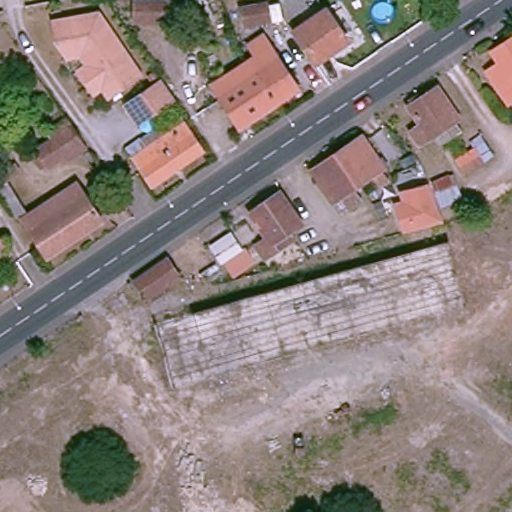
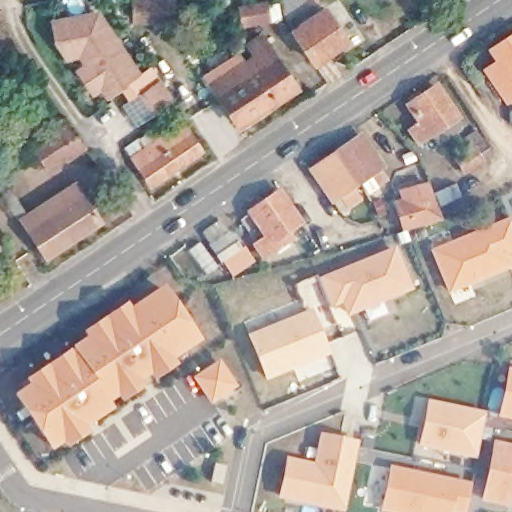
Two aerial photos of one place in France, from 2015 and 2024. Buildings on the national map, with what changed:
unchanged [(289,21),(286,0),(305,0),(310,7),(289,21)]
unchanged [(246,27),(244,9),(267,6),(270,24),(246,27)]
unchanged [(327,10),(350,43),(318,64),(296,31),(327,10)]
unchanged [(101,97),(73,56),(60,57),(47,39),(45,20),(90,15),(132,76),(101,97)]
unchanged [(489,56),(502,48),(495,38),(512,27),(512,87),(510,88),(489,56)]
unchanged [(259,53),(256,55),(251,46),(264,38),(298,90),(279,102),(242,126),(221,95),(215,86),(248,66),(260,56),(259,53)]
unchanged [(430,115),(419,96),(446,79),(464,108),(427,133),(419,121),(430,115)]
unchanged [(128,105),(164,80),(175,97),(140,121),(128,105)]
unchanged [(186,120),(204,146),(154,179),(136,152),(186,120)]
unchanged [(55,136),(52,133),(67,122),(85,148),(69,159),(65,153),(50,163),(40,146),(55,136)]
unchanged [(379,164),(377,166),(386,176),(376,183),(368,172),(349,185),(356,197),(345,204),(338,193),(329,199),(312,172),(309,167),(324,158),(359,135),(379,164)]
unchanged [(472,164),(465,152),(483,141),(490,153),(472,164)]
unchanged [(49,255),(26,218),(50,201),(78,183),(85,192),(103,219),(49,255)]
unchanged [(435,222),(398,232),(390,205),(399,202),(396,193),(422,184),(426,194),(435,222)]
unchanged [(271,244),(261,251),(241,220),(238,215),(252,206),(277,190),(297,220),(284,228),(287,234),(271,244)]
new [(512,225),(512,251),(505,254),(510,265),(449,290),(432,252),(510,221),(512,225)]
unchanged [(229,233),(247,261),(232,270),(214,243),(229,233)]
unchanged [(0,246),(0,241),(2,245),(0,246)]
new [(394,247),(413,290),(346,318),(340,305),(329,309),(317,279),(394,247)]
demolished [(181,275),(146,298),(136,282),(171,259),(181,275)]
new [(26,385),(23,379),(70,347),(84,337),(81,332),(125,302),(129,308),(162,286),(201,341),(173,360),(177,366),(153,382),(149,376),(140,382),(144,387),(120,403),(117,398),(107,404),(112,411),(85,427),(90,433),(64,450),(61,444),(50,452),(12,395),(26,385)]
new [(310,312),(326,352),(266,376),(250,336),(310,312)]
new [(210,404),(193,378),(221,360),(238,387),(210,404)]
new [(512,420),(496,418),(507,367),(512,368),(512,420)]
new [(476,456),(471,459),(417,448),(426,400),(485,412),(476,456)]
new [(357,442),(343,512),(340,512),(277,498),(285,457),(312,462),(318,433),(357,442)]
new [(512,504),(510,508),(480,502),(492,441),(512,445),(512,504)]
new [(464,512),(452,512),(451,512),(379,512),(388,466),(470,483),(464,512)]

